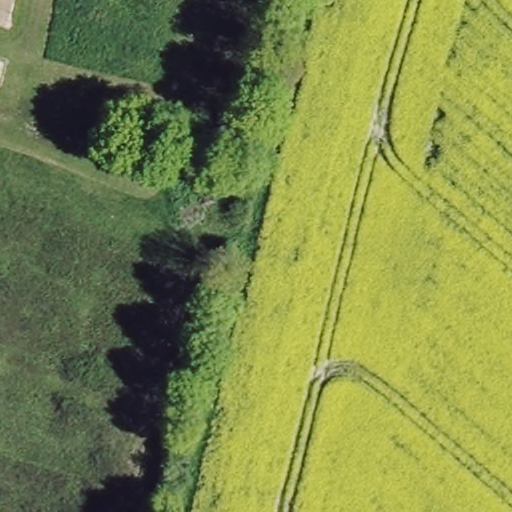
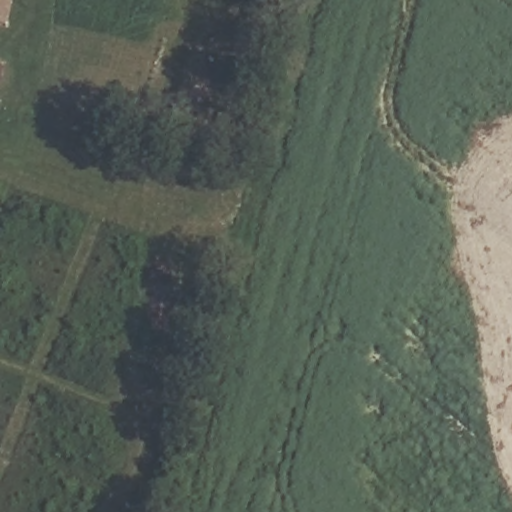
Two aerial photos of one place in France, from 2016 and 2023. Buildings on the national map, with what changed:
unchanged [(0,7),(0,0),(11,0),(8,9),(0,7)]

